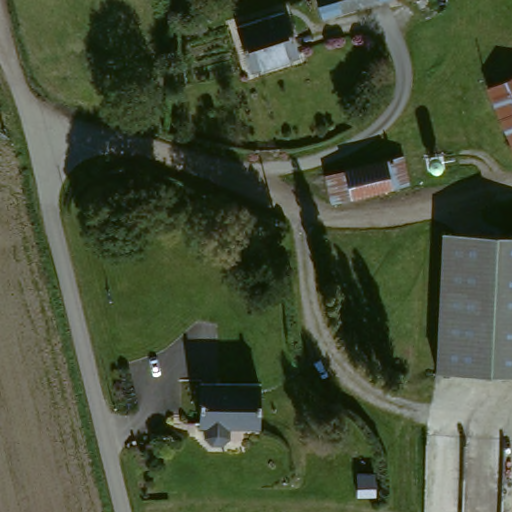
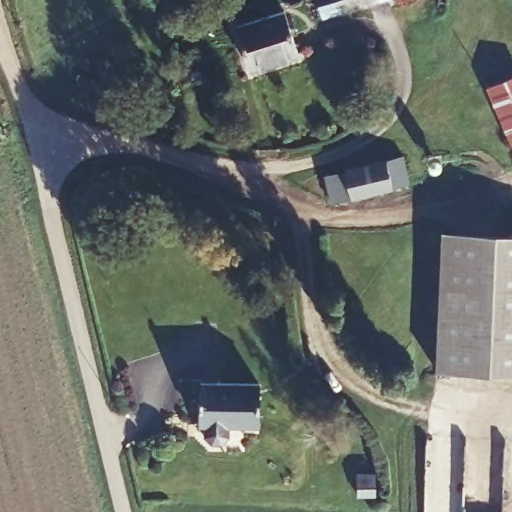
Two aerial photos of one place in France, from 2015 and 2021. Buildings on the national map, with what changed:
unchanged [(364,0),(348,5),(302,22),(296,24),(287,0),(364,0)]
unchanged [(370,0),(377,0),(370,2),(370,0)]
unchanged [(262,59),(248,61),(241,17),(288,11),(292,26),(298,54),(262,59)]
unchanged [(151,69),(77,84),(71,63),(100,56),(99,48),(144,37),(150,62),(151,69)]
unchanged [(512,78),(512,131),(492,87),(512,78)]
unchanged [(340,199),(335,193),(323,195),(322,181),(409,162),(413,183),(340,199)]
unchanged [(442,239),(512,243),(512,383),(436,379),(437,349),(442,239)]
unchanged [(225,423),(225,432),(220,438),(210,438),(204,432),(204,423),(199,423),(199,380),(253,379),(254,422),(225,423)]

